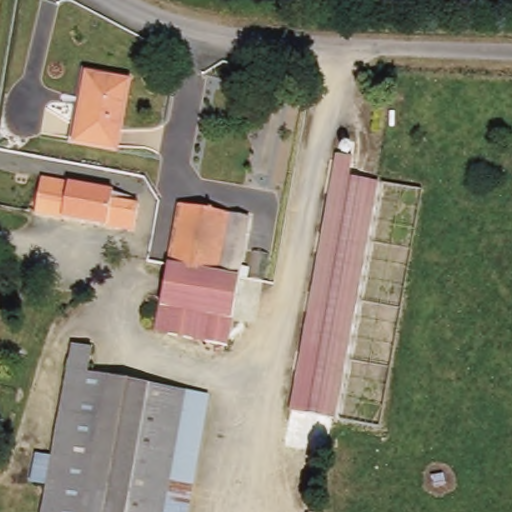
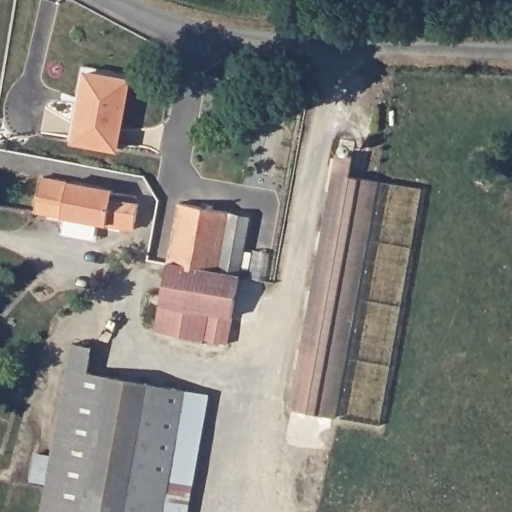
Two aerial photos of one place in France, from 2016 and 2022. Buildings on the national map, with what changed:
unchanged [(136,77),(122,155),(71,145),(86,69),(136,77)]
unchanged [(358,154),(355,175),(380,178),(340,413),(335,415),(297,408),(342,151),(358,154)]
unchanged [(119,189),(118,195),(145,200),(140,228),(40,209),(46,175),(119,189)]
unchanged [(179,203),(229,212),(220,270),(220,271),(241,274),(228,343),(156,330),(169,261),(179,203)]
unchanged [(241,274),(220,271),(220,270),(229,212),(252,216),(241,274)]
unchanged [(74,342),(97,345),(93,371),(189,389),(167,512),(43,512),(48,483),(34,481),(39,452),(54,454),(74,342)]
unchanged [(189,390),(213,394),(191,512),(167,512),(189,390)]

